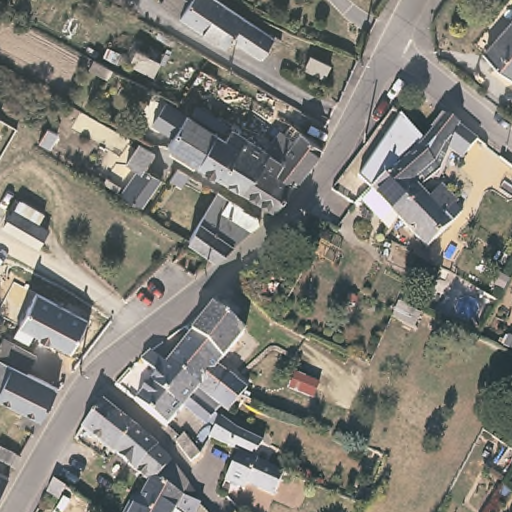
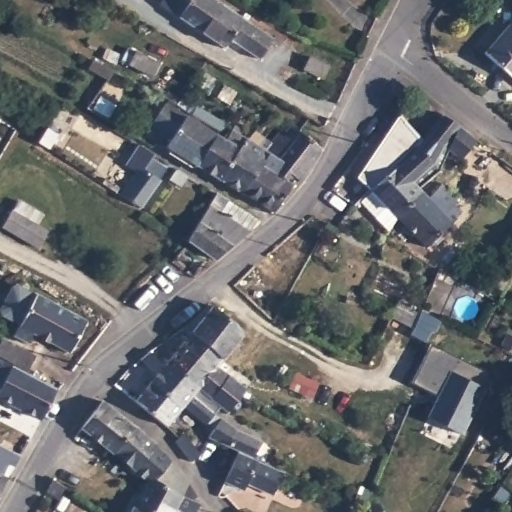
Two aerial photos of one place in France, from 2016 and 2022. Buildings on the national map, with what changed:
unchanged [(202,30),(167,5),(170,0),(191,0),(195,2),(197,0),(223,0),(202,30)]
unchanged [(235,40),(236,41),(231,49),(202,30),(223,0),(249,17),(235,40)]
unchanged [(280,37),(281,35),(288,40),(283,47),(277,43),(266,60),(236,41),(235,40),(249,17),(280,37)]
unchanged [(512,23),(512,74),(487,52),(512,23)]
unchanged [(161,61),(155,76),(131,66),(138,52),(161,61)]
unchanged [(331,65),(325,79),(305,70),(311,56),(331,65)]
unchanged [(115,71),(108,80),(90,70),(94,60),(115,71)]
unchanged [(248,193),(226,180),(205,166),(173,146),(178,137),(158,125),(172,102),(180,107),(193,115),(224,133),(223,135),(230,140),(238,128),(271,148),(286,131),(299,140),(277,171),(266,165),(248,193)]
unchanged [(401,212),(393,205),(382,216),(362,194),(369,187),(375,182),(362,172),(401,111),(405,114),(412,121),(425,136),(445,110),(462,120),(481,132),(469,153),(452,143),(443,162),(441,165),(428,177),(422,182),(426,187),(404,209),(401,212)]
unchanged [(60,132),(50,147),(40,141),(49,126),(60,132)]
unchanged [(277,171),(299,140),(305,131),(327,148),(301,184),(277,171)]
unchanged [(150,151),(156,154),(152,160),(147,169),(162,180),(143,207),(122,194),(137,171),(127,164),(140,144),(150,151)]
unchanged [(301,184),(298,185),(280,212),(248,193),(266,165),(277,171),(301,184)]
unchanged [(190,175),(183,187),(171,180),(175,174),(179,168),(190,175)]
unchanged [(404,209),(426,187),(430,191),(444,178),(460,195),(456,200),(463,208),(429,240),(401,212),(404,209)]
unchanged [(259,217),(260,224),(215,260),(188,240),(218,192),(259,217)]
unchanged [(41,244),(39,247),(5,227),(15,210),(18,211),(24,201),(46,213),(40,224),(49,229),(41,244)]
unchanged [(89,320),(72,352),(33,332),(28,343),(15,337),(20,326),(15,323),(19,315),(25,318),(39,292),(89,320)]
unchanged [(413,305),(412,307),(422,313),(415,327),(393,317),(401,300),(413,305)]
unchanged [(216,305),(220,307),(236,321),(244,328),(247,332),(236,345),(226,357),(195,331),(216,305)]
unchanged [(247,368),(259,378),(244,395),(229,412),(212,398),(199,387),(186,377),(180,372),(170,363),(195,331),(226,357),(221,363),(224,367),(232,373),(239,378),(247,368)]
unchanged [(38,355),(30,372),(0,356),(0,345),(4,337),(38,355)]
new [(432,343),(491,372),(484,387),(486,389),(464,433),(429,416),(440,395),(413,382),(432,343)]
unchanged [(175,417),(169,425),(138,401),(161,372),(141,359),(154,350),(164,358),(170,363),(180,372),(186,377),(199,387),(175,417)]
unchanged [(59,387),(42,420),(0,399),(0,390),(1,388),(0,388),(0,358),(59,387)]
unchanged [(319,384),(311,399),(290,387),(296,372),(319,384)]
unchanged [(118,451),(116,453),(84,430),(105,399),(138,426),(118,451)]
unchanged [(274,491),(248,480),(245,486),(226,476),(239,449),(212,437),(224,418),(238,428),(266,440),(255,456),(284,470),(274,491)]
unchanged [(152,478),(137,467),(118,451),(138,426),(147,432),(158,442),(178,463),(194,484),(202,497),(200,501),(184,494),(177,489),(160,477),(153,478),(152,478)]
unchanged [(202,452),(194,460),(192,459),(188,453),(179,442),(179,436),(185,431),(202,452)]
unchanged [(22,456),(17,466),(0,457),(0,444),(22,456)]
unchanged [(11,477),(0,496),(0,471),(11,477)]
unchanged [(177,489),(184,494),(200,501),(203,502),(209,512),(126,512),(131,502),(135,495),(142,500),(153,478),(160,477),(177,489)]
unchanged [(69,486),(61,499),(50,493),(48,492),(55,478),(69,486)]

